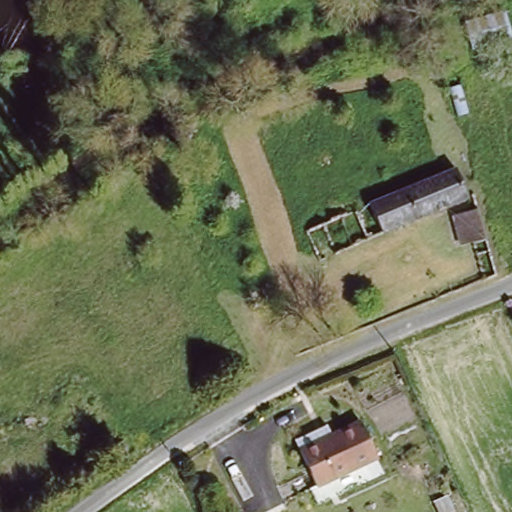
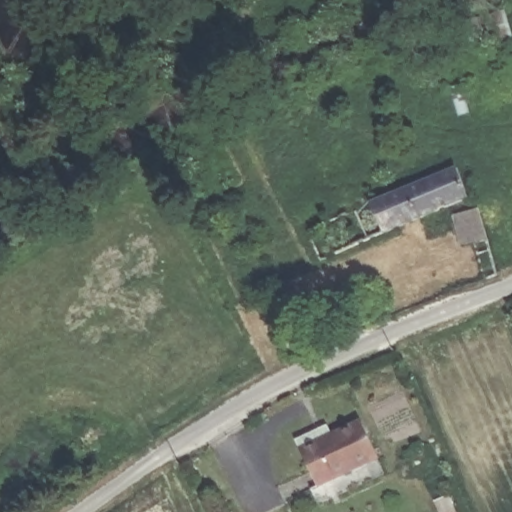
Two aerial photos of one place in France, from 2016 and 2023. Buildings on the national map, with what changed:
unchanged [(506,12),(512,32),(512,37),(475,50),(469,19),(506,12)]
unchanged [(385,233),(372,202),(459,168),(471,197),(385,233)]
unchanged [(363,425),(378,457),(349,472),(334,437),(363,425)]
unchanged [(349,472),(322,485),(305,450),(334,437),(349,472)]

